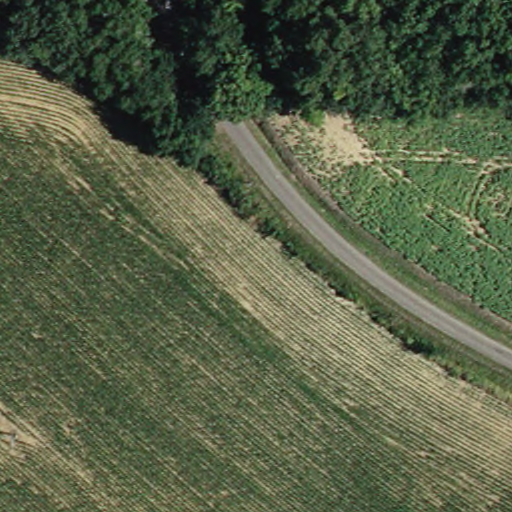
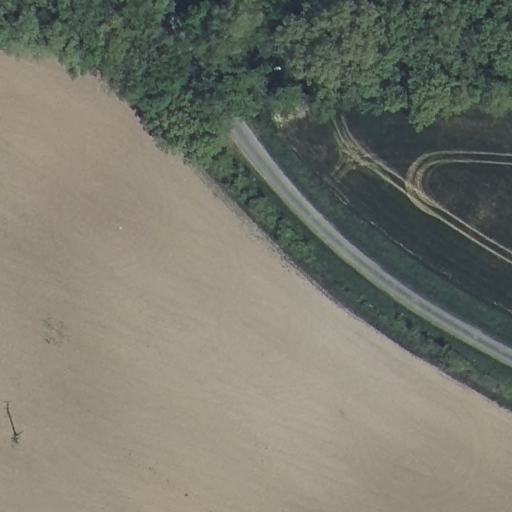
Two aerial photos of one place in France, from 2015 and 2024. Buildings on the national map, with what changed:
unchanged [(348,27),(363,28),(362,46),(347,45),(348,27)]

